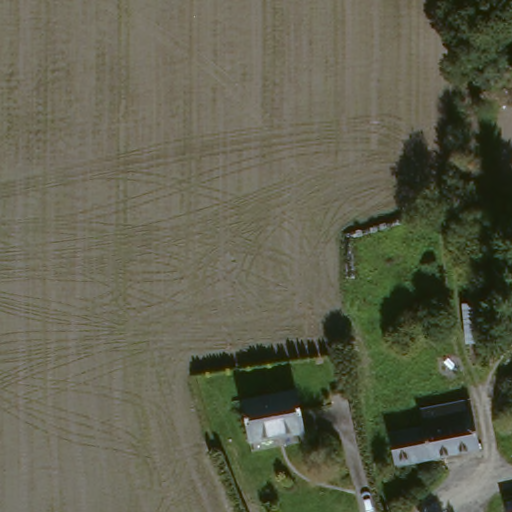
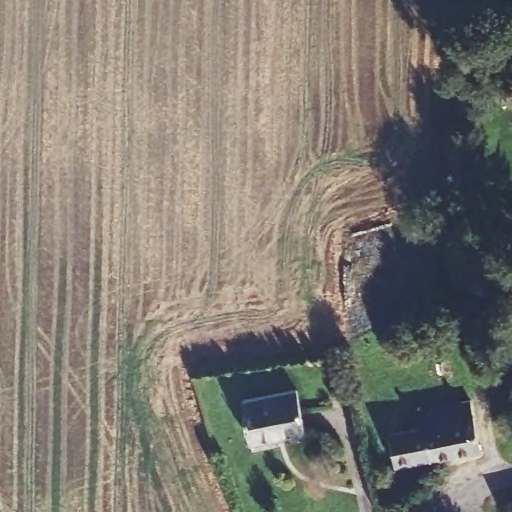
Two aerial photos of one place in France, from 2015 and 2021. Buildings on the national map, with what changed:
unchanged [(236,403),(290,390),(302,428),(249,442),(236,403)]
unchanged [(474,451),(420,463),(391,470),(385,438),(415,431),(412,416),(465,406),(474,451)]
unchanged [(500,508),(512,505),(512,512),(501,512),(500,508)]

